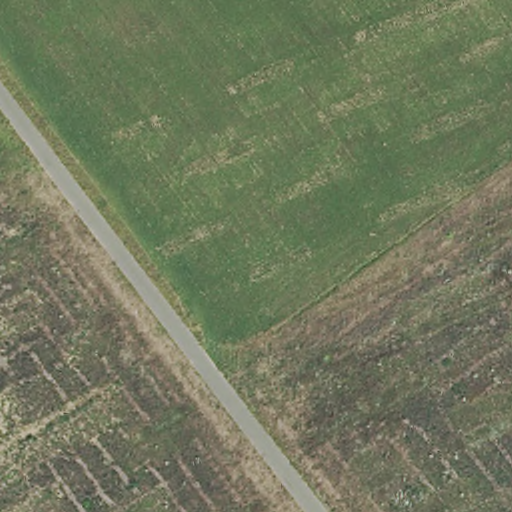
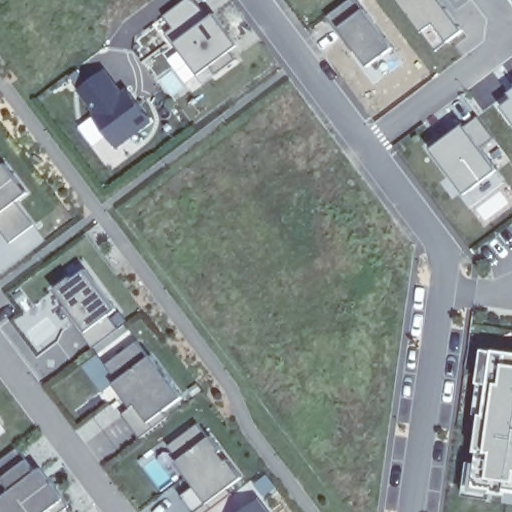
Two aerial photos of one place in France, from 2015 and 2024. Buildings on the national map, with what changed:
new [(196,74),(173,44),(165,34),(172,28),(163,16),(186,0),(193,0),(208,18),(213,14),(238,45),(229,51),(236,59),(205,82),(196,74)]
new [(369,68),(357,51),(354,53),(344,39),(346,37),(331,16),(353,0),(356,0),(364,11),(365,11),(394,49),(369,68)]
new [(449,44),(434,25),(422,34),(395,0),(441,0),(466,33),(449,44)]
new [(115,152),(88,118),(97,110),(80,89),(106,69),(123,91),(128,86),(155,121),(115,152)]
new [(508,95),(512,92),(512,125),(500,106),(512,99),(508,95)]
new [(491,139),(477,152),(493,172),(459,197),(426,152),(476,117),(491,139)]
new [(8,165),(30,194),(18,203),(36,226),(12,244),(0,228),(0,171),(8,165)]
new [(56,291),(73,278),(74,281),(88,271),(118,311),(110,317),(120,331),(96,349),(85,334),(88,333),(56,291)]
new [(88,333),(85,334),(96,349),(94,350),(74,324),(78,320),(88,333)]
new [(163,411),(168,417),(141,438),(123,415),(131,407),(113,384),(118,380),(106,366),(138,342),(151,357),(181,398),(163,411)]
new [(512,497),(465,489),(481,352),(512,355),(512,497)]
new [(241,480),(200,512),(194,512),(184,500),(196,491),(168,454),(203,425),(241,480)]
new [(19,449),(44,483),(49,479),(71,508),(66,512),(3,512),(0,507),(0,501),(4,498),(0,493),(0,464),(19,449)]
new [(264,512),(240,512),(254,501),(264,512)]

